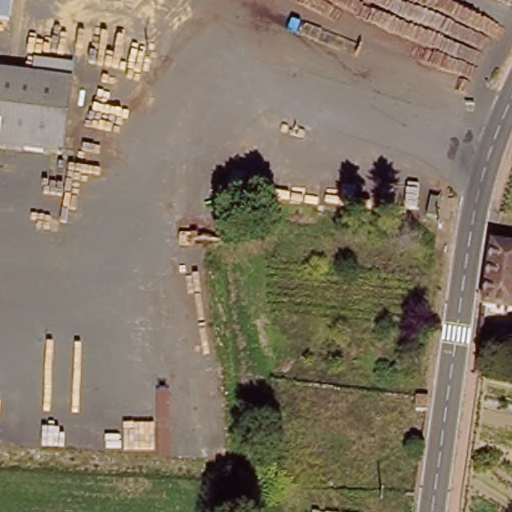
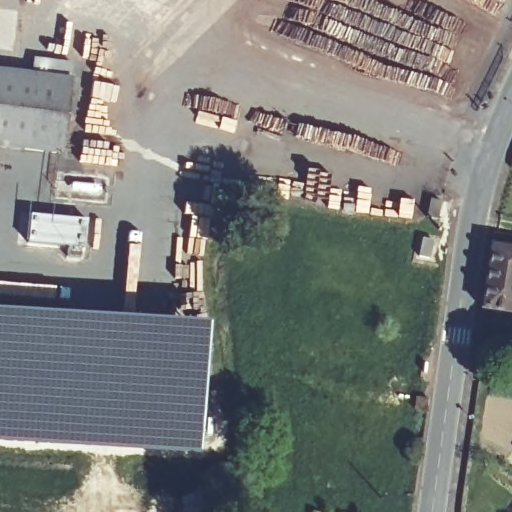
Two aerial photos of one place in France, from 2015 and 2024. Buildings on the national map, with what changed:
unchanged [(471,5),(453,3),(453,0),(471,0),(471,5)]
unchanged [(65,158),(0,149),(0,73),(76,84),(65,158)]
new [(29,212),(83,217),(81,249),(26,242),(29,212)]
unchanged [(486,308),(495,243),(512,247),(512,312),(486,308)]
new [(201,454),(0,441),(0,310),(209,323),(201,454)]

